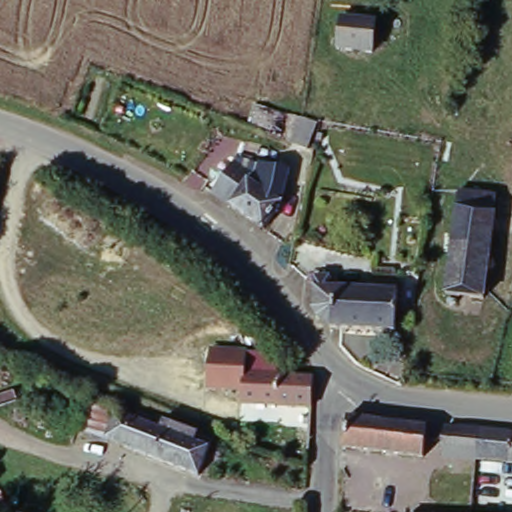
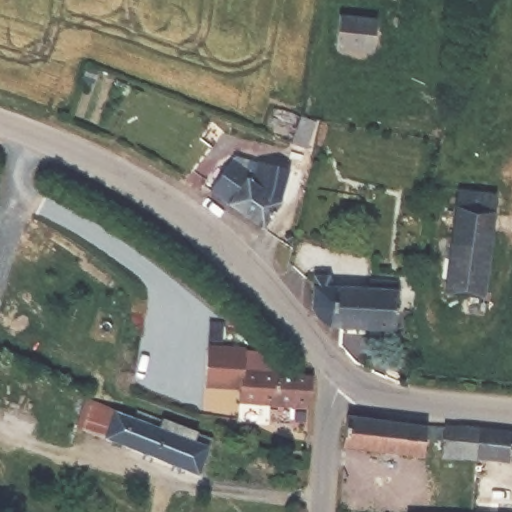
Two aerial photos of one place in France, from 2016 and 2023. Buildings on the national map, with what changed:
unchanged [(376,21),(372,53),(337,49),(341,17),(376,21)]
unchanged [(216,186),(232,160),(252,172),(248,179),(255,183),(258,163),(287,170),(280,201),(282,202),(263,228),(213,192),(216,186)]
unchanged [(447,297),(458,212),(461,193),(500,198),(497,217),(487,302),(447,297)]
unchanged [(342,332),(332,332),(332,322),(319,321),(313,313),(315,275),(326,276),(325,280),(331,280),(331,292),(372,293),(370,334),(342,332)]
unchanged [(372,293),(372,284),(399,285),(398,295),(400,295),(397,335),(370,334),(372,293)]
unchanged [(209,390),(212,347),(247,349),(245,372),(244,391),(209,390)]
unchanged [(316,376),(314,405),(243,402),(245,372),(310,375),(316,376)]
unchanged [(205,437),(201,445),(217,451),(205,480),(167,465),(111,444),(82,432),(94,404),(122,415),(124,411),(145,418),(146,416),(186,430),(188,431),(205,437)]
unchanged [(425,456),(346,446),(344,445),(348,416),(430,426),(425,456)]
unchanged [(445,459),(447,430),(464,432),(465,429),(482,431),(480,462),(445,459)]
unchanged [(482,431),(512,434),(512,465),(480,462),(482,431)]

